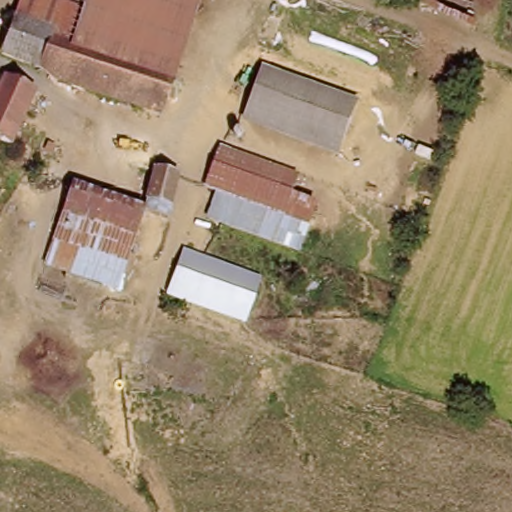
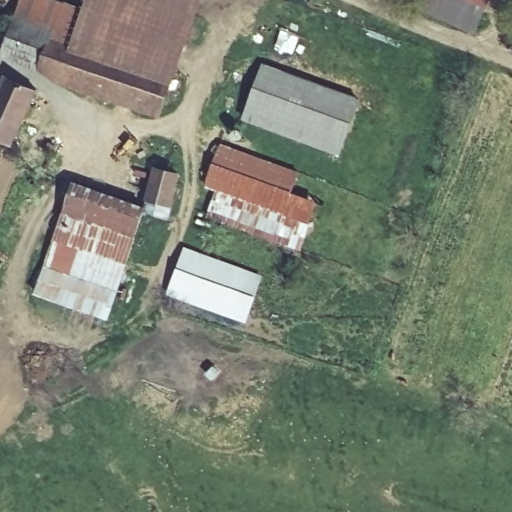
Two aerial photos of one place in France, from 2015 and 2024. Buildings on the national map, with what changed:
unchanged [(60,85),(38,68),(1,55),(22,0),(64,0),(81,6),(83,0),(202,0),(163,116),(60,85)]
new [(410,3),(411,0),(493,0),(476,35),(410,3)]
unchanged [(343,154),(245,117),(266,62),(362,97),(343,154)]
unchanged [(0,91),(7,75),(40,91),(12,147),(0,141),(0,91)]
unchanged [(306,251),(211,218),(219,190),(207,186),(225,142),(303,171),(298,191),(320,200),(306,251)]
unchanged [(153,205),(166,162),(190,169),(175,212),(153,205)]
unchanged [(75,176),(148,201),(120,289),(45,265),(75,176)]
unchanged [(248,318),(170,292),(187,250),(266,280),(248,318)]

